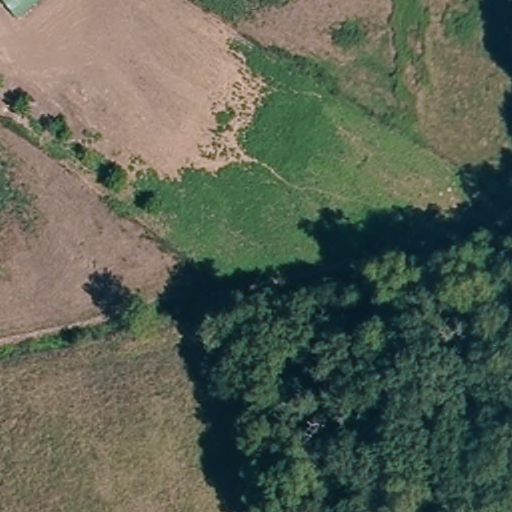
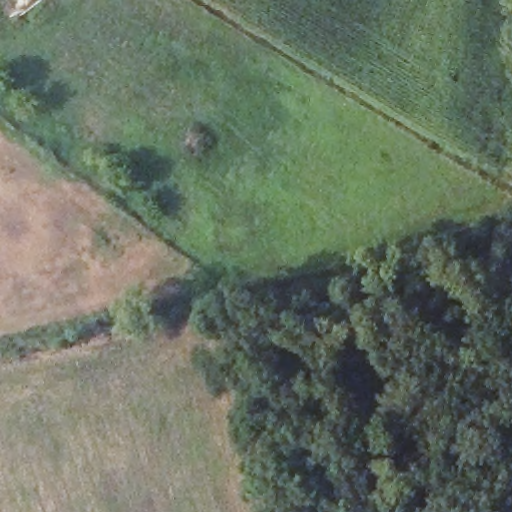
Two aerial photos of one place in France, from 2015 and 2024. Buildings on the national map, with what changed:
unchanged [(10,0),(45,0),(25,17),(10,0)]

